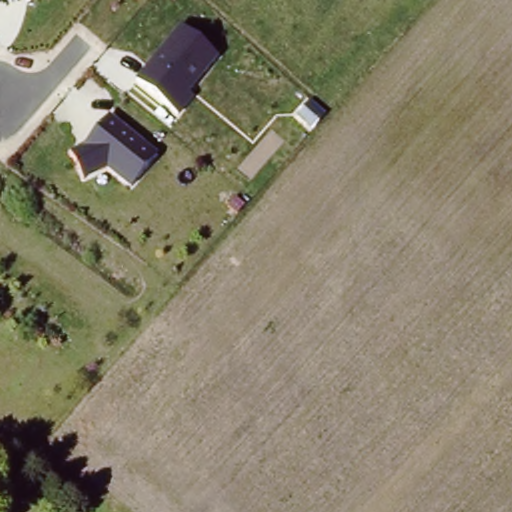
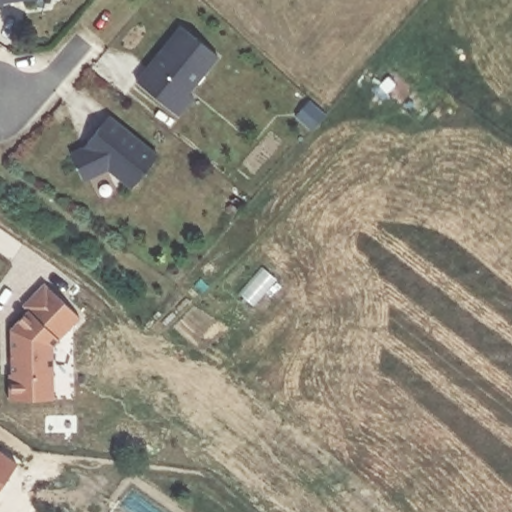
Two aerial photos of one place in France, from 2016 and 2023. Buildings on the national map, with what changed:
unchanged [(0,6),(0,0),(10,0),(10,4),(0,6)]
unchanged [(219,55),(189,93),(193,97),(178,116),(132,82),(177,25),(219,55)]
unchanged [(87,148),(111,117),(158,156),(132,190),(106,171),(83,181),(70,157),(87,148)]
new [(60,341),(53,347),(55,399),(8,401),(7,373),(10,373),(10,329),(27,310),(22,306),(44,282),(81,318),(60,341)]

